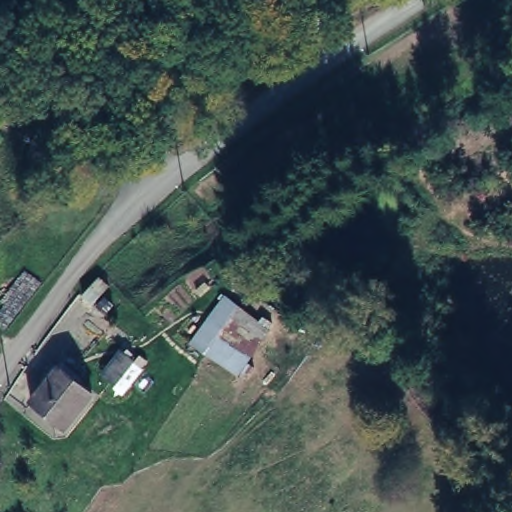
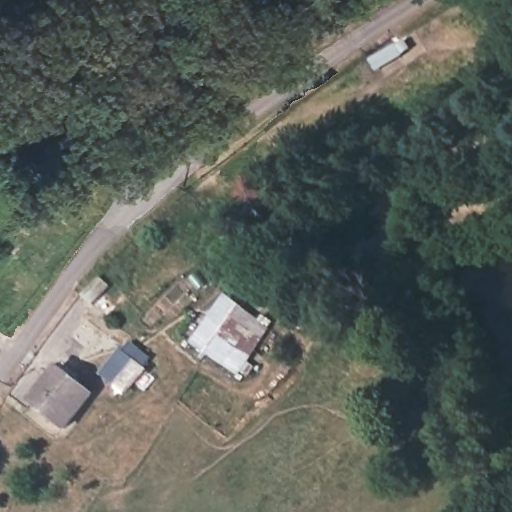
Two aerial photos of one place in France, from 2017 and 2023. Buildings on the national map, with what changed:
unchanged [(193,337),(228,291),(232,300),(221,315),(201,342),(193,337)]
unchanged [(212,337),(232,310),(262,339),(237,371),(207,348),(212,337)]
unchanged [(67,425),(50,412),(36,401),(49,383),(65,362),(83,376),(96,386),(67,425)]

